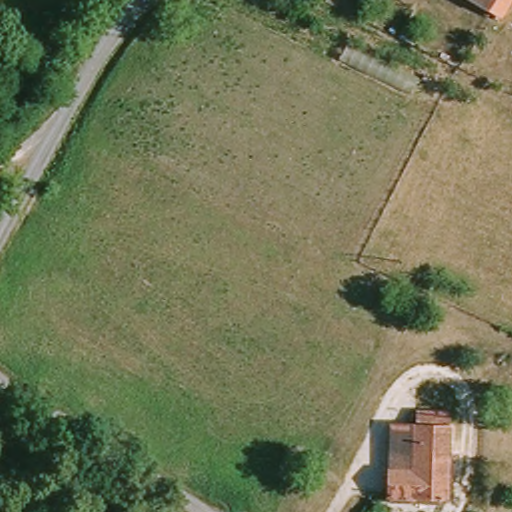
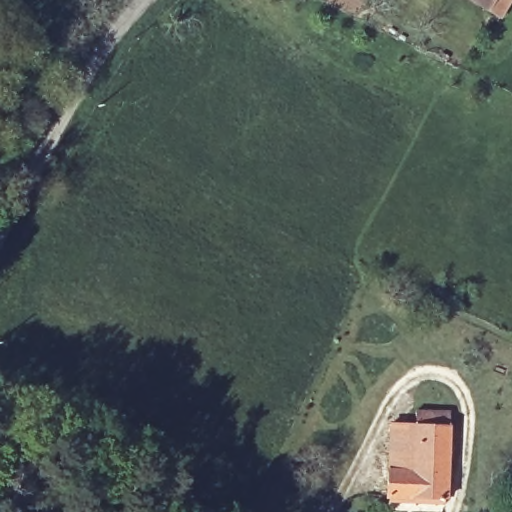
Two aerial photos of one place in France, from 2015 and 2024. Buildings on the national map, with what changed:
unchanged [(497,23),(459,0),(510,0),(497,23)]
unchanged [(391,429),(415,430),(416,415),(450,416),(447,504),(388,502),(391,429)]

